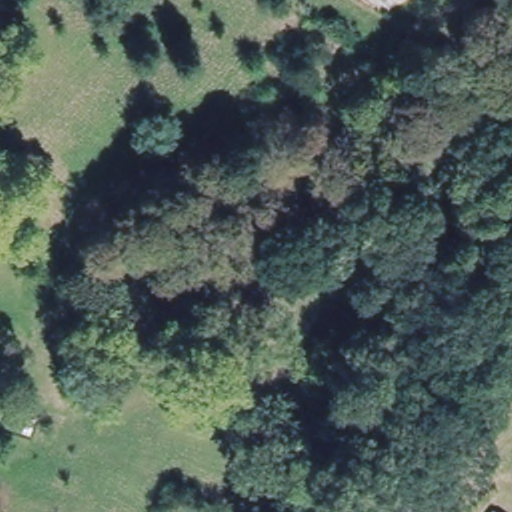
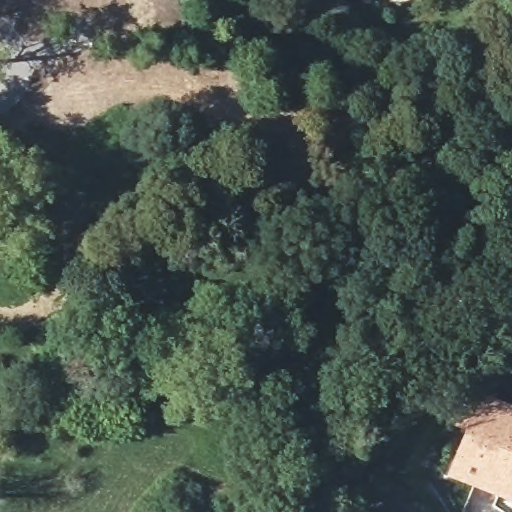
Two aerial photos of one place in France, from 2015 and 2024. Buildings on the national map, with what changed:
new [(460,428),(471,400),(482,405),(512,417),(512,502),(453,479),(472,433),(460,428)]
demolished [(500,512),(488,512),(492,506),(500,512)]

